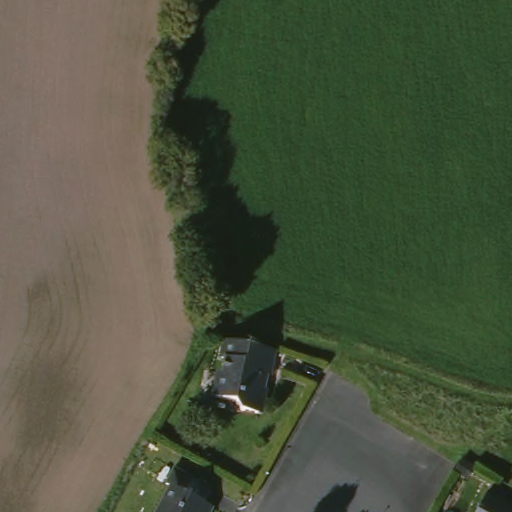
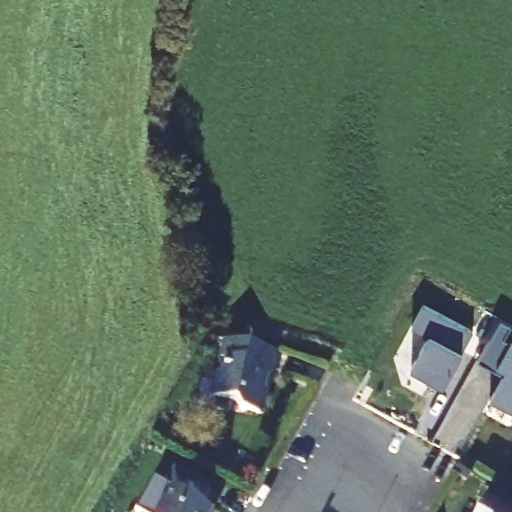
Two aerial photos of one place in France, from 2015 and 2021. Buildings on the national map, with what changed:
new [(430,337),(412,327),(424,307),(473,334),(444,387),(412,369),(430,337)]
new [(504,372),(496,368),(510,343),(512,344),(512,414),(488,401),(504,372)]
unchanged [(277,378),(261,375),(258,391),(272,394),(266,424),(241,419),(242,411),(210,405),(215,384),(224,386),(226,369),(222,368),(227,346),(282,357),(277,378)]
unchanged [(228,512),(165,512),(187,480),(179,475),(186,463),(224,485),(216,497),(220,499),(231,507),(228,512)]
unchanged [(488,501),(510,512),(482,512),(488,501)]

